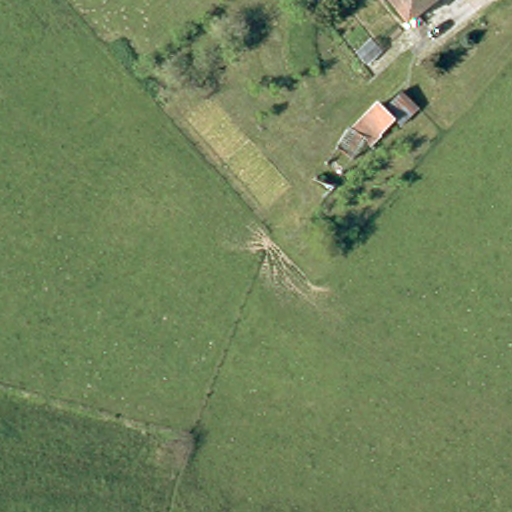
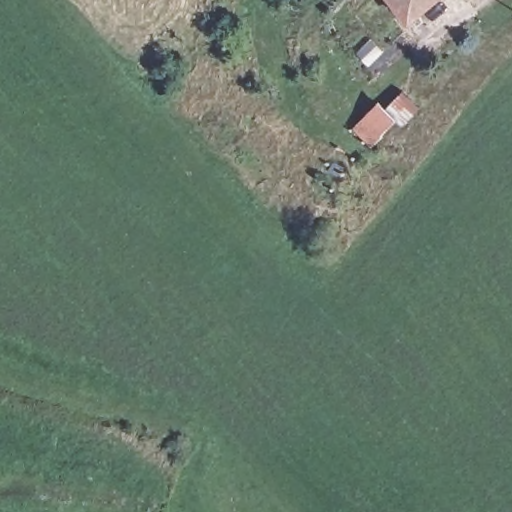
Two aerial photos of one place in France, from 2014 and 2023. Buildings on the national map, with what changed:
unchanged [(407,11),(397,0),(421,0),(414,6),(419,12),(411,18),(407,11)]
unchanged [(426,86),(401,110),(386,94),(410,70),(426,86)]
unchanged [(378,96),(395,109),(363,156),(345,144),(378,96)]

